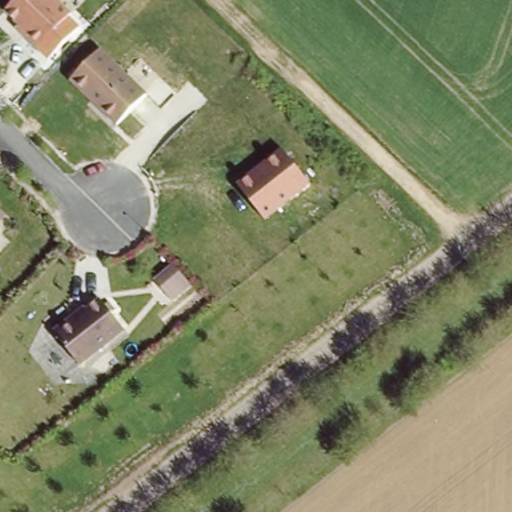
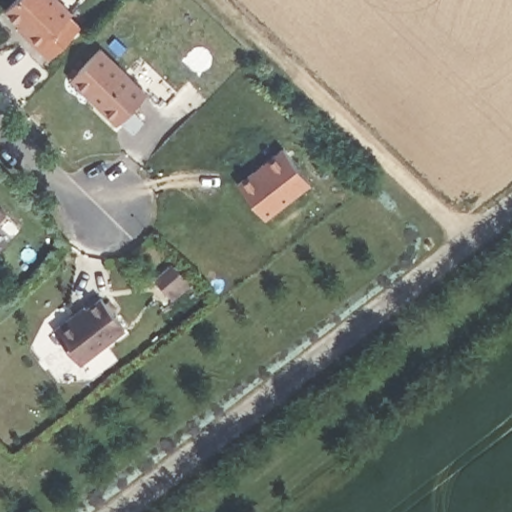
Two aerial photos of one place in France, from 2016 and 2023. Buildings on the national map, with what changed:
unchanged [(2,12),(15,0),(54,0),(70,15),(35,50),(22,39),(14,30),(17,26),(2,12)]
unchanged [(68,77),(98,46),(145,91),(115,122),(68,77)]
unchanged [(281,145),(308,180),(263,215),(235,181),(281,145)]
unchanged [(75,313),(77,316),(101,296),(125,327),(80,362),(54,330),(75,313)]

